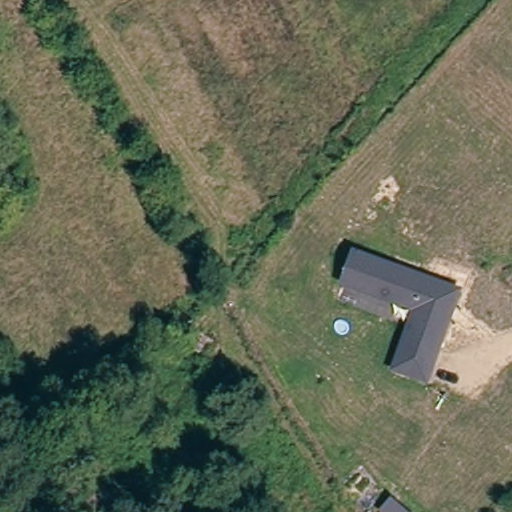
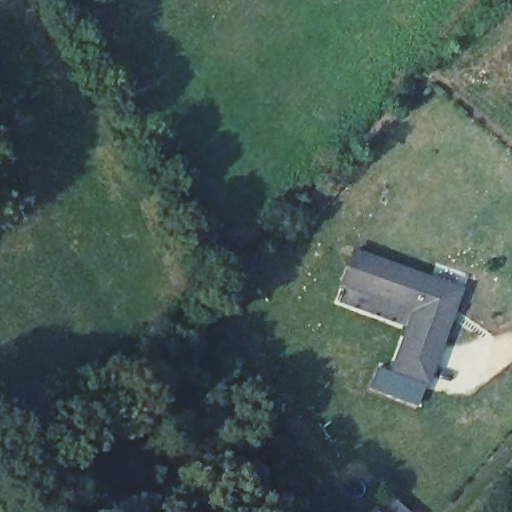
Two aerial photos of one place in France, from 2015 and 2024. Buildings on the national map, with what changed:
unchanged [(430,385),(388,371),(409,309),(339,284),(352,247),(465,285),(430,385)]
unchanged [(202,341),(213,348),(209,355),(198,348),(202,341)]

